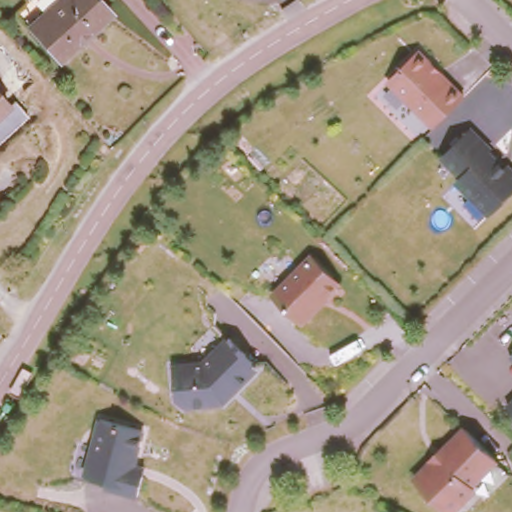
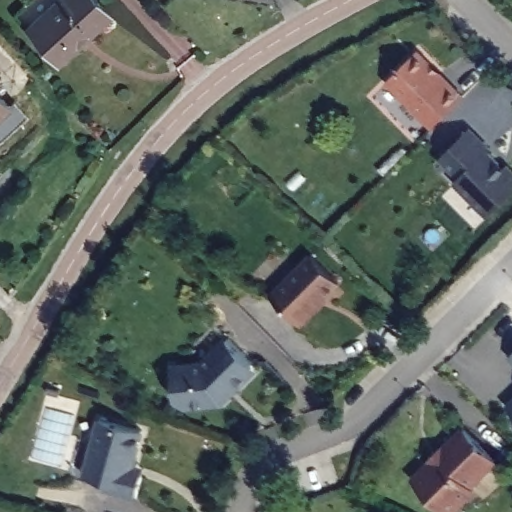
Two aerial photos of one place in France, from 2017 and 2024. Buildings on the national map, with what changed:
unchanged [(111,14),(60,64),(32,34),(67,0),(97,0),(111,14)]
unchanged [(387,81),(424,46),(466,90),(436,127),(387,81)]
unchanged [(0,108),(0,102),(3,106),(0,108)]
unchanged [(458,181),(463,176),(444,153),(475,127),(512,168),(512,190),(487,214),(458,181)]
unchanged [(276,294),(312,253),(341,278),(305,324),(276,294)]
unchanged [(181,402),(177,361),(205,361),(224,335),(258,368),(227,403),(181,402)]
unchanged [(512,354),(512,362),(508,358),(512,354)]
unchanged [(512,401),(512,412),(506,407),(512,401)]
unchanged [(87,474),(101,419),(147,430),(141,464),(147,466),(141,495),(87,474)]
unchanged [(465,426),(503,461),(479,488),(450,512),(449,512),(415,475),(465,426)]

